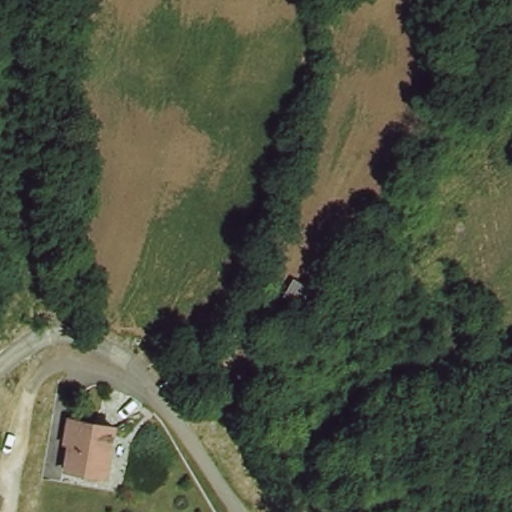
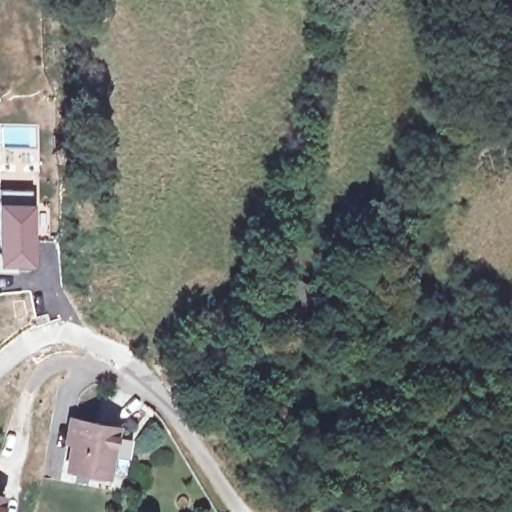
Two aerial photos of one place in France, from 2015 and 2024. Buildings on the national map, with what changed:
new [(32,188),(34,266),(0,267),(0,188),(32,188)]
unchanged [(83,419),(122,425),(114,478),(75,472),(83,419)]
unchanged [(9,493),(5,512),(0,512),(0,491),(9,493)]

